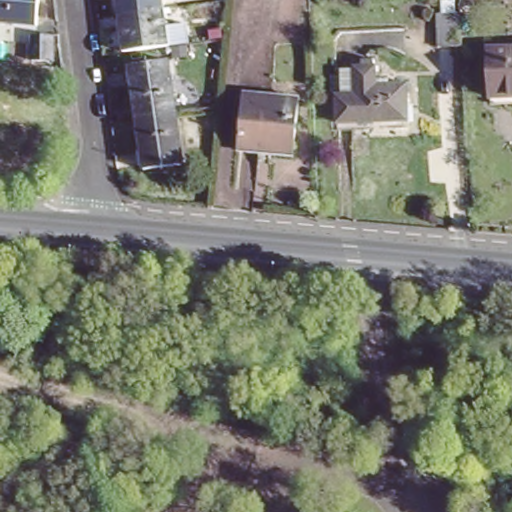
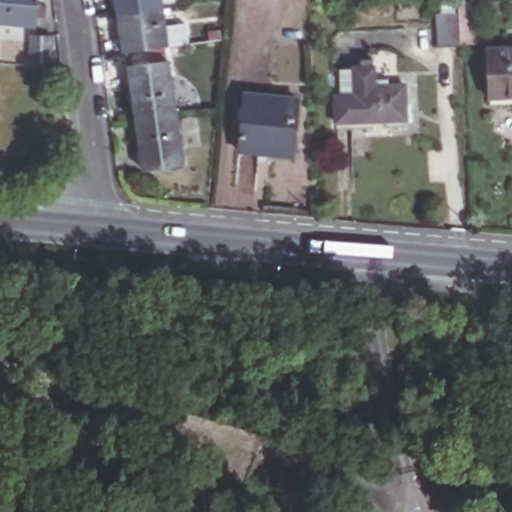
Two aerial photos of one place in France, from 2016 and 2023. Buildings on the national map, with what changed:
unchanged [(35,0),(32,25),(0,21),(0,0),(35,0)]
unchanged [(116,16),(114,0),(160,0),(162,9),(116,16)]
unchanged [(162,9),(165,32),(184,30),(186,46),(122,56),(116,16),(162,9)]
unchanged [(460,37),(460,50),(440,52),(439,17),(459,17),(460,37)]
unchanged [(52,57),(32,54),(32,29),(55,32),(52,57)]
unchanged [(488,89),(492,42),(512,43),(512,90),(488,89)]
unchanged [(177,112),(135,117),(128,70),(170,64),(177,112)]
unchanged [(337,93),(345,94),(345,66),(361,67),(383,68),(382,90),(410,91),(408,122),(358,120),(335,119),(337,93)]
unchanged [(289,150),(238,146),(242,92),(292,96),(289,150)]
unchanged [(135,117),(177,112),(185,167),(142,173),(135,117)]

